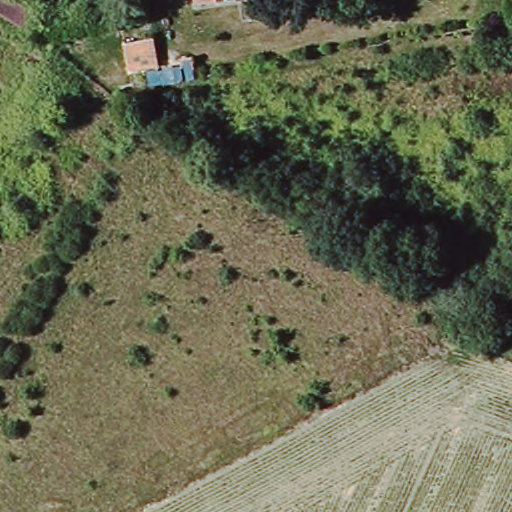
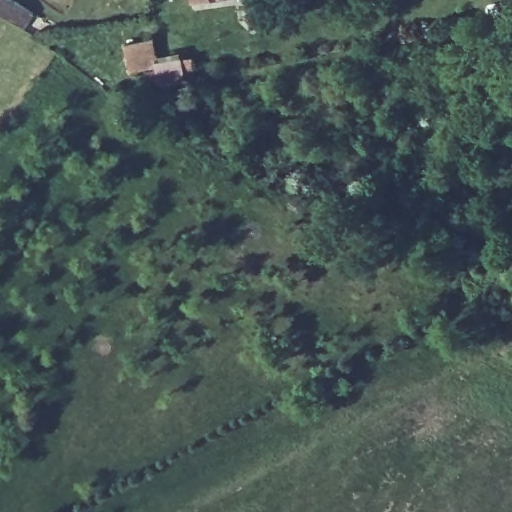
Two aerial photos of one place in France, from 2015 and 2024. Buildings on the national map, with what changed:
unchanged [(0,12),(0,0),(18,0),(36,12),(25,29),(0,12)]
unchanged [(195,0),(206,0),(195,2),(195,0)]
unchanged [(159,63),(133,69),(127,43),(153,37),(159,63)]
unchanged [(194,55),(195,70),(182,70),(180,56),(194,55)]

